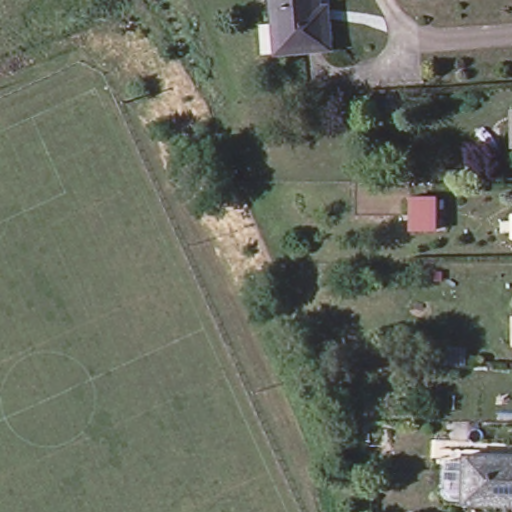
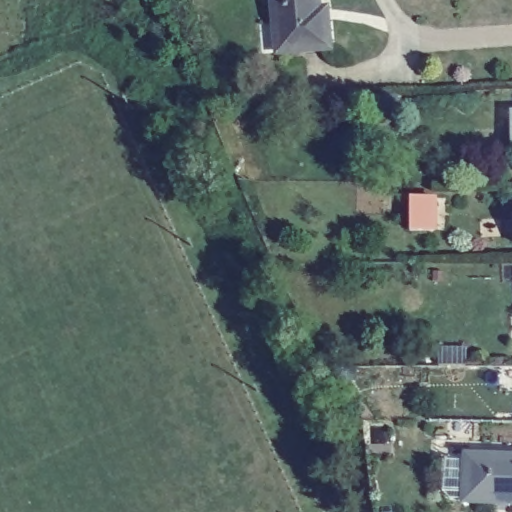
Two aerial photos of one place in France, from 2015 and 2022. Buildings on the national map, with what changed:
unchanged [(330,21),(334,50),(282,57),(275,0),(320,0),(321,11),(329,10),(330,21)]
unchanged [(434,199),(435,233),(413,233),(413,199),(434,199)]
unchanged [(442,352),(467,353),(467,368),(442,368),(442,352)]
unchanged [(512,506),(465,505),(467,458),(512,459),(512,506)]

